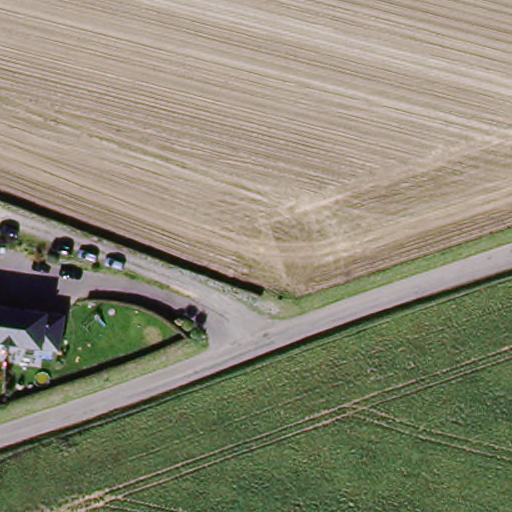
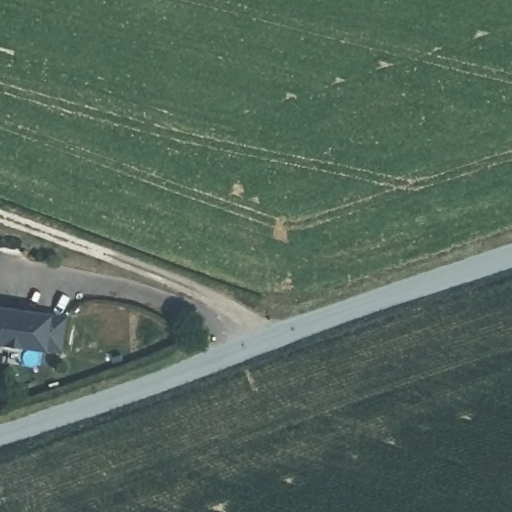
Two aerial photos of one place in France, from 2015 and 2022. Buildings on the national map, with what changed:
unchanged [(58,356),(0,344),(0,309),(65,321),(58,356)]

